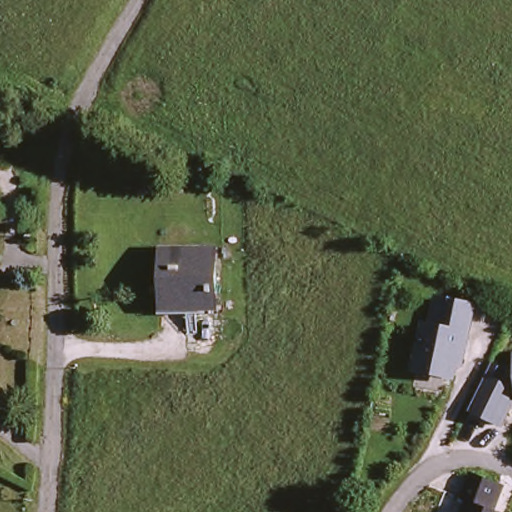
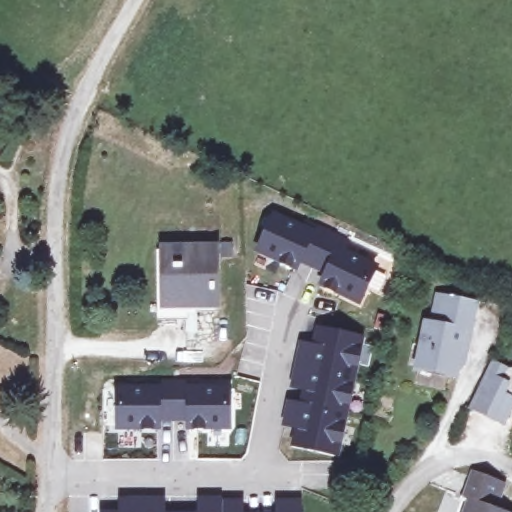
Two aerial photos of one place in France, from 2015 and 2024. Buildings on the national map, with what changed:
new [(273,214),(302,227),(305,221),(347,240),(342,251),(374,266),(357,300),(320,282),(326,270),(298,258),(295,266),(257,249),(273,214)]
unchanged [(165,245),(213,245),(215,303),(193,304),(195,295),(164,295),(165,245)]
unchanged [(471,304),(466,331),(461,331),(453,372),(416,365),(425,322),(431,323),(436,295),(471,304)]
new [(335,455),(293,445),(297,428),(284,425),(288,403),(301,406),(305,388),(292,385),(300,346),(313,349),(317,331),(359,340),(335,455)]
unchanged [(470,410),(476,394),(490,365),(503,371),(512,372),(512,406),(502,425),(470,410)]
new [(188,427),(187,418),(172,418),(156,418),(156,427),(117,427),(117,389),(147,388),(147,381),(196,381),(196,388),(227,388),(227,426),(188,427)]
unchanged [(464,495),(473,498),(482,475),(509,484),(500,508),(509,512),(457,512),(461,501),(464,495)]
new [(220,500),(220,502),(240,502),(240,512),(200,512),(200,500),(220,500)]
new [(298,500),(299,512),(278,512),(278,501),(298,500)]
new [(162,501),(162,512),(121,512),(121,502),(162,501)]
unchanged [(373,508),(372,512),(360,512),(362,506),(373,508)]

